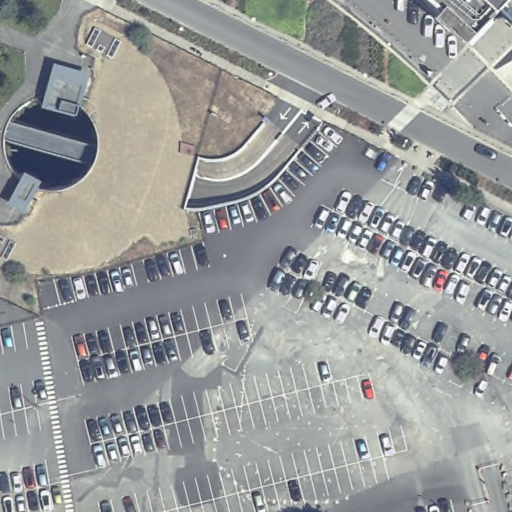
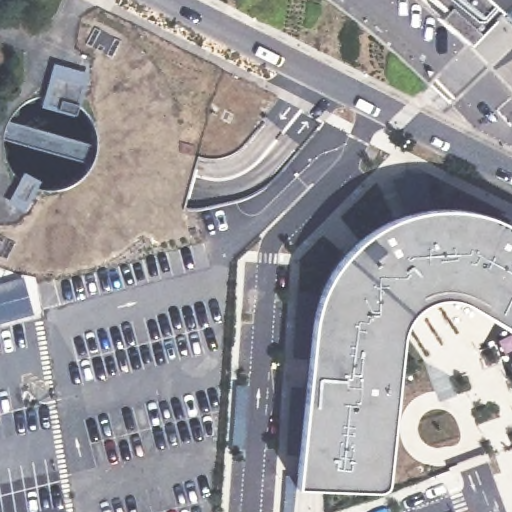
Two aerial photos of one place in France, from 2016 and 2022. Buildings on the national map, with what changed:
unchanged [(499,7),(466,39),(437,13),(442,8),(433,0),(512,0),(512,19),(499,7)]
unchanged [(50,83),(55,64),(71,69),(69,76),(87,81),(78,114),(66,110),(44,104),(50,83)]
unchanged [(40,179),(29,203),(14,194),(26,172),(40,179)]
new [(478,309),(457,299),(441,298),(429,300),(414,309),(404,320),(399,334),(397,365),(384,482),(383,488),(378,490),(296,487),(315,319),(320,297),(334,269),(350,250),(374,230),(397,219),(419,212),(450,210),(474,213),(494,218),(512,227),(512,331),(478,309)]

